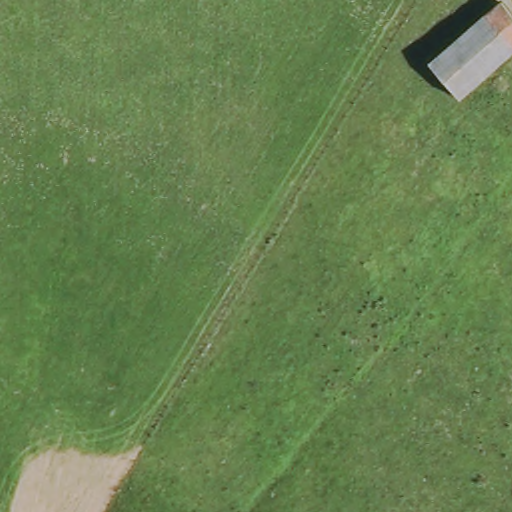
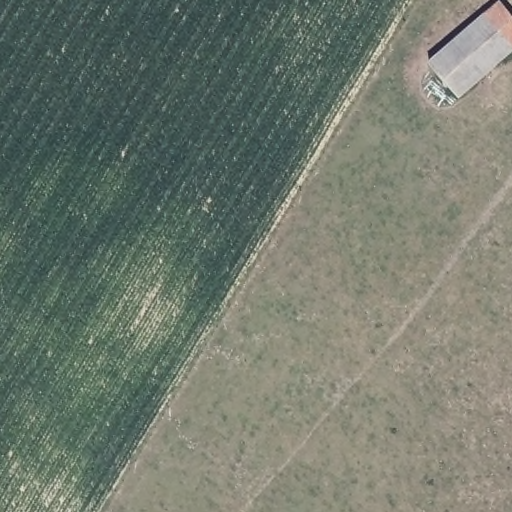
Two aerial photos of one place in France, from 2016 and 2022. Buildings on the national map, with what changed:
unchanged [(512,10),(512,63),(465,104),(437,68),(508,6),(512,10)]

